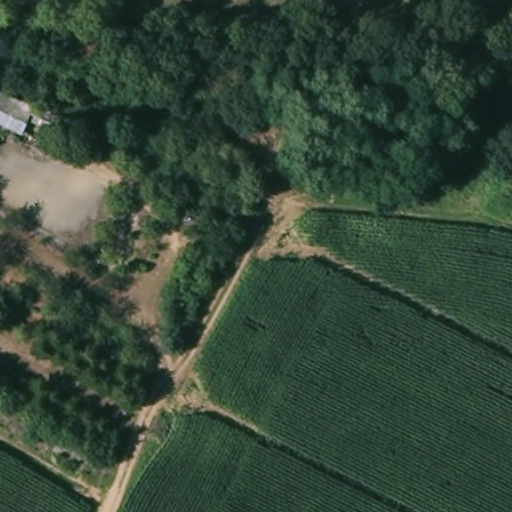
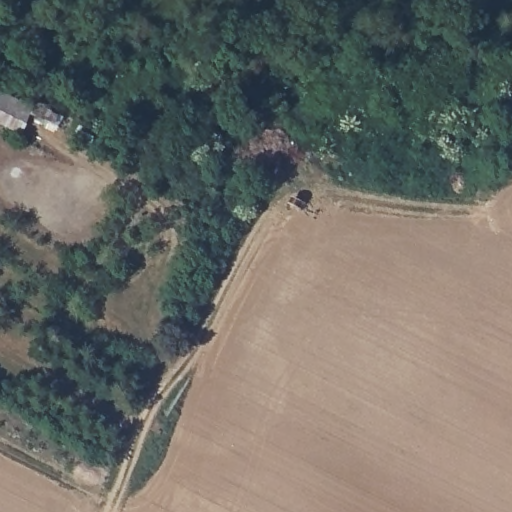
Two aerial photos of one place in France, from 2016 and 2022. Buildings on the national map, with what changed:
unchanged [(56,112),(45,131),(27,122),(21,132),(0,122),(0,93),(56,112)]

